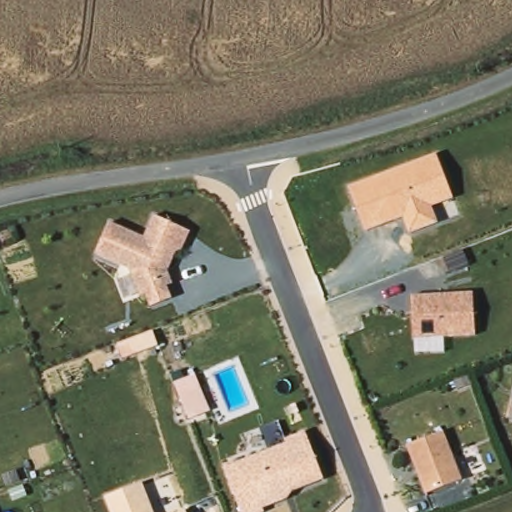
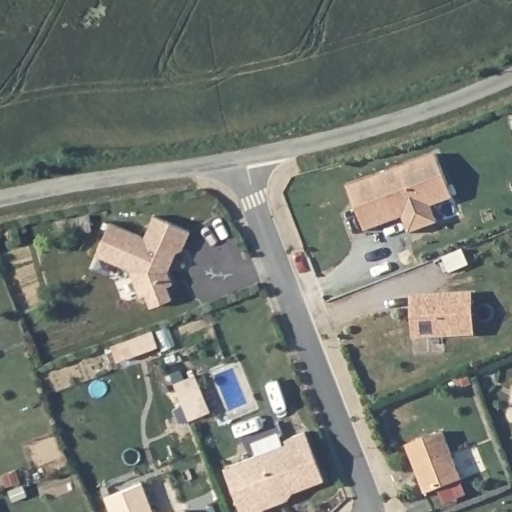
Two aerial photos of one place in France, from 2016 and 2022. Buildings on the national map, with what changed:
unchanged [(441,161),(457,205),(435,214),(442,230),(414,241),(407,224),(370,238),(353,195),(441,161)]
unchanged [(186,228),(183,242),(175,247),(167,273),(175,295),(145,306),(131,265),(100,251),(110,220),(145,234),(152,214),(186,228)]
unchanged [(410,295),(473,292),(475,337),(412,340),(410,295)]
unchanged [(462,477),(425,492),(406,442),(442,430),(462,477)]
unchanged [(283,439),(308,432),(325,481),(292,492),(290,498),(260,512),(240,512),(222,467),(285,443),(283,439)]
unchanged [(104,498),(144,483),(154,512),(109,512),(104,498)]

